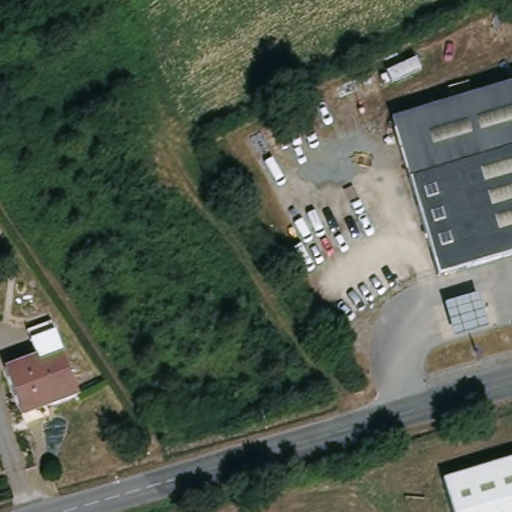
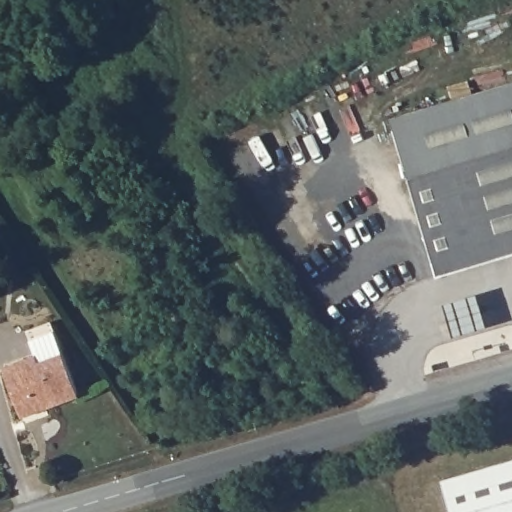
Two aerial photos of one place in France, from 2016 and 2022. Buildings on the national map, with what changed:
unchanged [(512,81),(512,254),(442,276),(411,180),(392,120),(512,81)]
unchanged [(477,295),(490,331),(455,340),(443,306),(477,295)]
unchanged [(3,371),(35,359),(30,340),(55,330),(80,396),(20,418),(3,371)]
unchanged [(450,512),(440,479),(512,459),(512,512),(450,512)]

